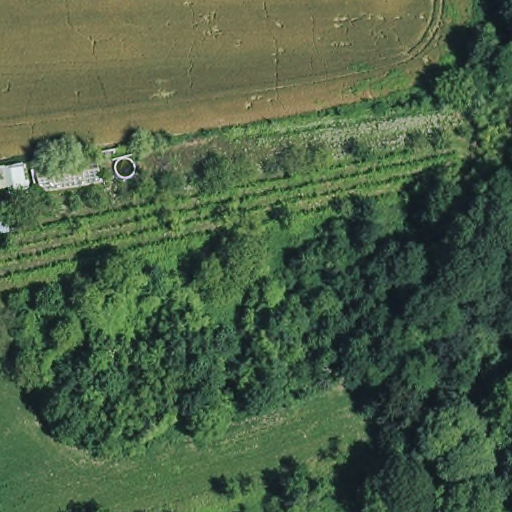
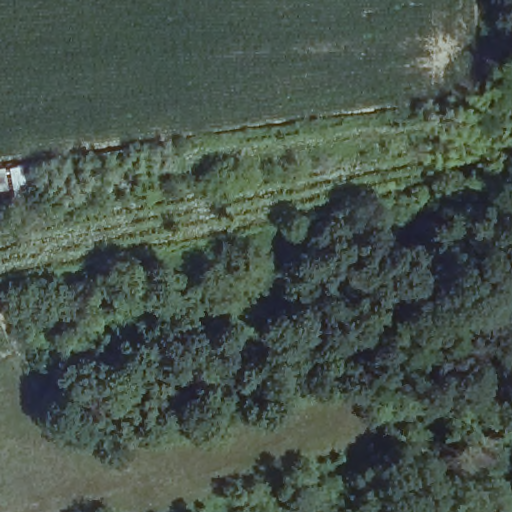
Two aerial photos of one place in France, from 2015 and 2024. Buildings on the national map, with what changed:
unchanged [(31,205),(11,209),(9,194),(0,195),(0,168),(28,165),(31,205)]

